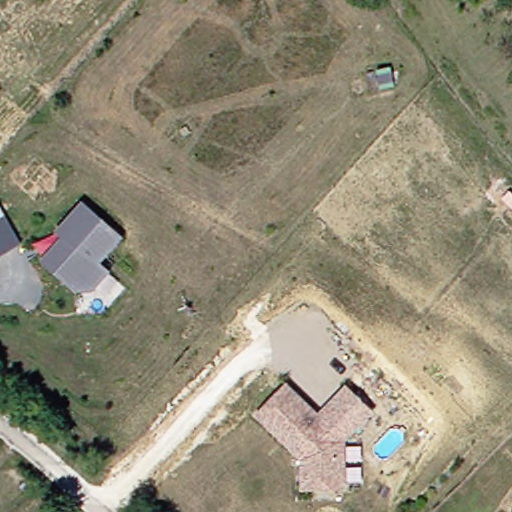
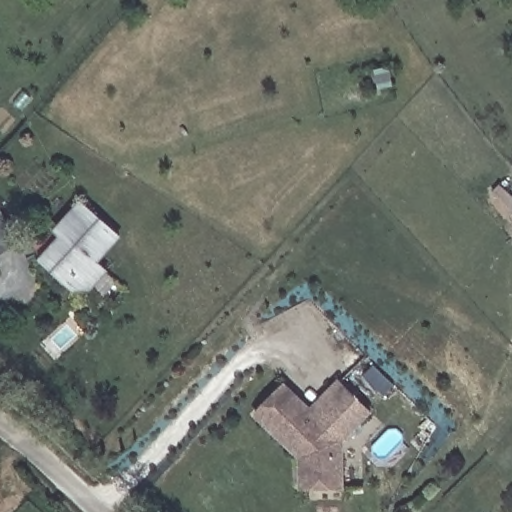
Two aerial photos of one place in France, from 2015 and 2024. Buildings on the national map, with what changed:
unchanged [(74,290),(42,262),(63,240),(56,234),(80,206),(119,240),(96,265),(106,274),(92,290),(84,299),(74,290)]
unchanged [(0,213),(1,215),(16,241),(0,251),(0,213)]
unchanged [(303,457),(256,413),(284,383),(318,415),(345,385),(371,410),(343,438),(344,459),(344,486),(317,487),(304,487),(303,457)]

